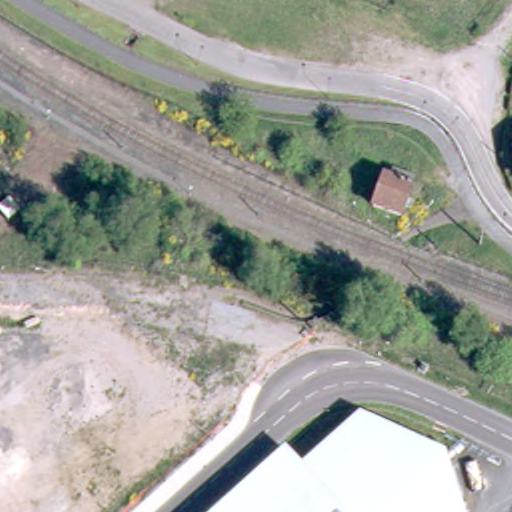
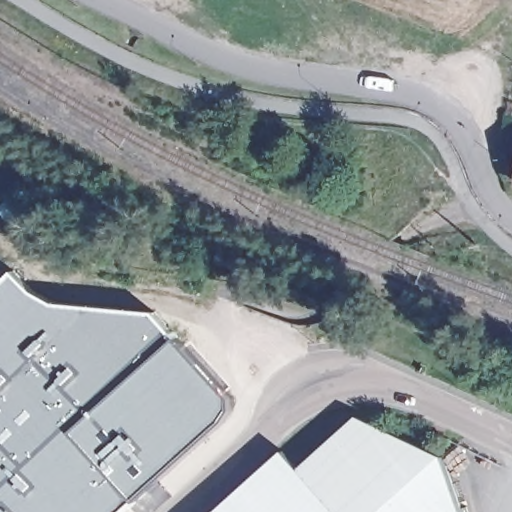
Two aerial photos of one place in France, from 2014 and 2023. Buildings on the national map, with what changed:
demolished [(386,183),(390,172),(412,180),(399,219),(371,209),(381,182),(386,183)]
new [(0,283),(11,272),(31,293),(52,303),(116,310),(135,327),(151,312),(231,401),(231,411),(225,423),(126,512),(0,512),(0,283)]
unchanged [(283,446),(301,466),(355,416),(446,455),(463,512),(210,512),(283,446)]

